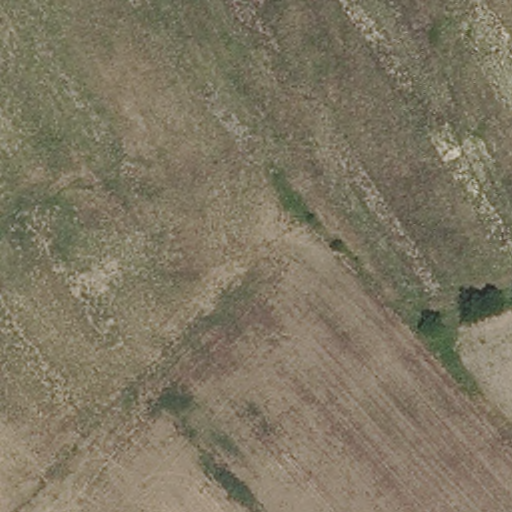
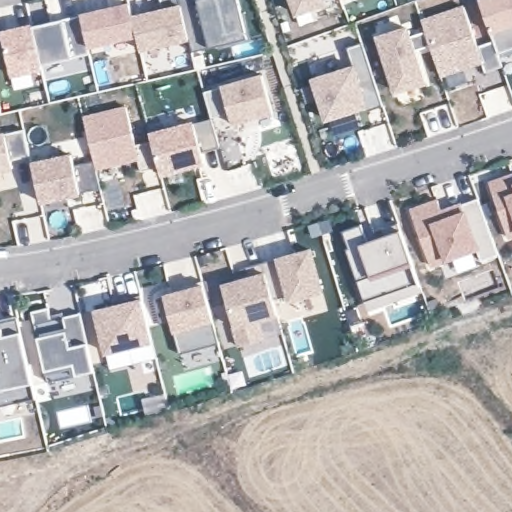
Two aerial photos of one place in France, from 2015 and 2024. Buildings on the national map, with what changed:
new [(31,25),(129,2),(133,14),(163,7),(161,0),(238,0),(247,38),(211,47),(191,52),(189,42),(141,54),(138,39),(91,51),(91,56),(72,58),(42,65),(43,72),(12,78),(1,29),(31,25)]
new [(324,2),(325,4),(297,14),(291,0),(327,0),(324,2)]
new [(486,0),(512,0),(512,49),(499,54),(494,42),(480,2),(486,0)]
new [(465,8),(479,47),(494,42),(499,54),(503,67),(486,73),(482,62),(441,76),(431,47),(426,31),(422,21),(465,8)]
new [(407,28),(410,36),(426,31),(431,47),(415,52),(424,82),(396,92),(379,37),(407,28)]
new [(326,120),(314,80),(353,67),(347,48),(363,42),(383,106),(368,111),(366,107),(358,110),(326,120)]
new [(221,88),(221,85),(263,73),(274,114),(233,125),(230,112),(212,118),(204,92),(221,88)]
new [(128,108),(137,145),(152,141),(159,168),(141,172),(138,160),(97,170),(95,162),(84,120),(128,108)]
new [(165,123),(167,130),(212,118),(220,148),(202,153),(205,163),(161,174),(159,168),(152,141),(149,127),(165,123)]
new [(31,157),(10,161),(11,169),(0,171),(0,135),(25,129),(31,157)]
new [(72,155),(75,166),(95,162),(97,170),(101,189),(41,202),(32,164),(72,155)]
new [(512,175),(512,236),(508,237),(490,183),(512,175)]
new [(443,211),(461,204),(478,199),(499,256),(481,262),(477,250),(431,267),(411,210),(438,201),(443,211)]
new [(367,311),(357,281),(346,250),(349,249),(343,232),(361,225),(369,246),(387,240),(383,229),(399,224),(420,282),(423,292),(367,311)]
new [(311,250),(322,291),(289,300),(288,295),(273,299),(264,265),(311,250)]
new [(249,279),(247,269),(264,265),(273,299),(278,315),(258,321),(264,340),(239,347),(222,286),(249,279)]
new [(204,286),(220,343),(180,354),(171,321),(164,323),(157,298),(204,286)]
new [(114,303),(125,300),(142,296),(153,342),(106,353),(96,312),(115,307),(114,303)]
new [(50,316),(60,314),(61,318),(81,314),(94,372),(48,382),(32,314),(49,309),(50,316)]
new [(0,368),(0,323),(18,319),(36,400),(19,404),(0,408),(0,374),(2,374),(0,368)]

